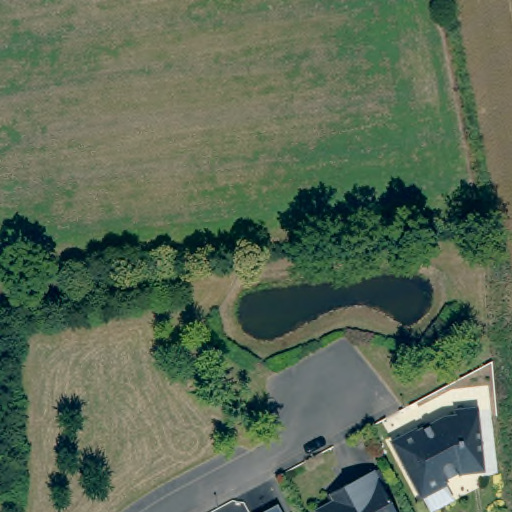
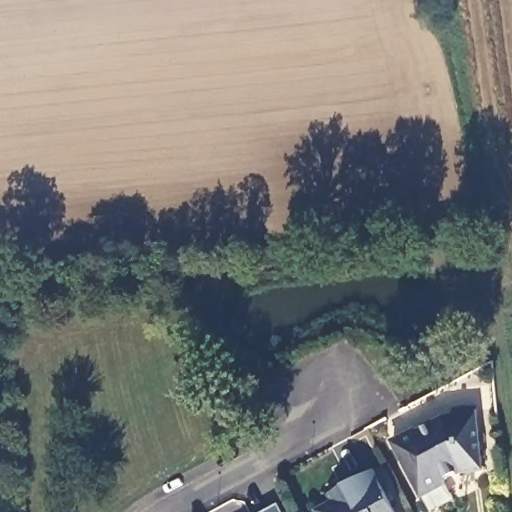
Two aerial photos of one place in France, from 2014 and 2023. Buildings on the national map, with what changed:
unchanged [(479,464),(461,467),(417,489),(389,438),(411,426),(412,428),(433,417),(434,419),(443,415),(449,413),(449,408),(472,405),(479,464)]
unchanged [(392,512),(316,512),(344,495),(342,489),(369,472),(392,512)]
unchanged [(280,509),(282,512),(275,512),(280,509)]

